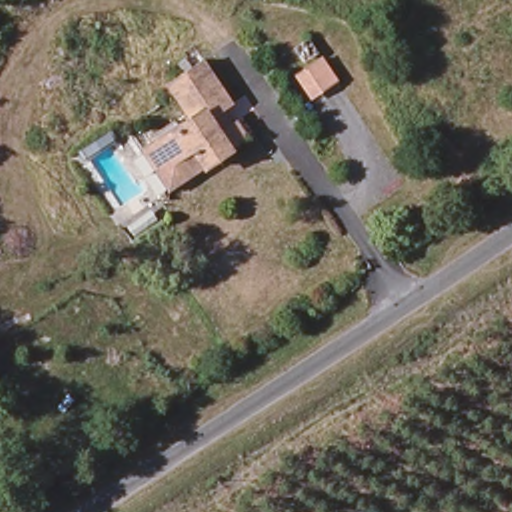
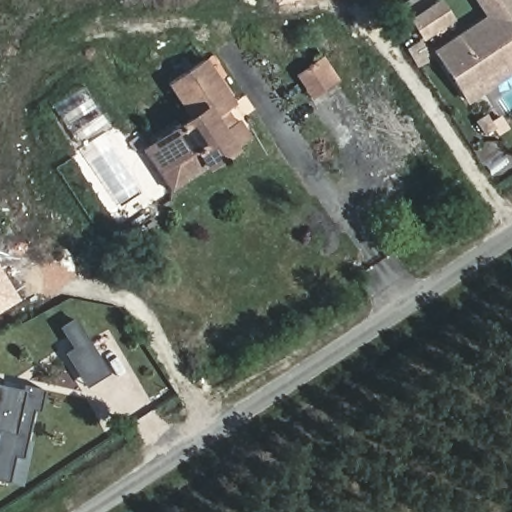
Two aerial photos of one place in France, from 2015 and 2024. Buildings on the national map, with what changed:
new [(275,5),(274,0),(297,0),(275,5)]
new [(432,51),(486,15),(476,0),(512,0),(512,74),(467,104),(432,51)]
new [(311,101),(294,75),(320,55),(340,80),(311,101)]
unchanged [(210,144),(183,160),(168,137),(185,125),(165,90),(202,66),(225,105),(216,113),(225,129),(235,122),(246,141),(220,159),(210,144)]
unchanged [(178,185),(152,147),(168,137),(183,160),(210,144),(220,159),(178,185)]
new [(19,300),(0,312),(0,271),(19,300)]
new [(109,371),(85,386),(64,353),(72,348),(60,328),(74,318),(109,371)]
new [(23,451),(29,452),(24,482),(0,478),(0,385),(21,388),(22,385),(43,389),(40,415),(30,414),(23,451)]

